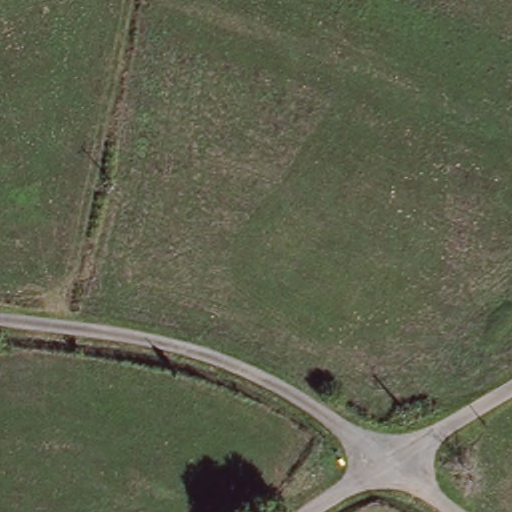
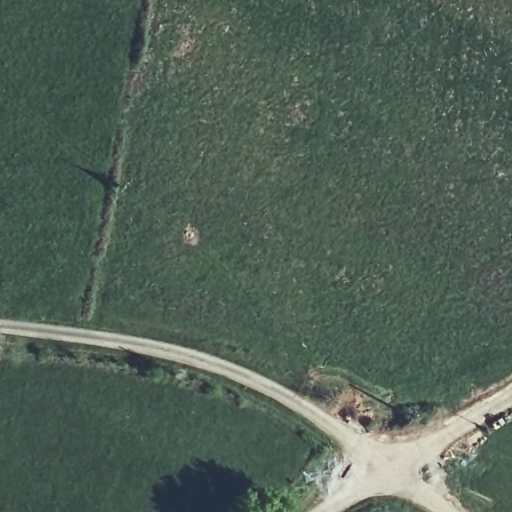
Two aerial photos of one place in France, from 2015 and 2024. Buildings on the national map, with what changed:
unchanged [(410,410),(425,403),(430,413),(416,421),(410,410)]

